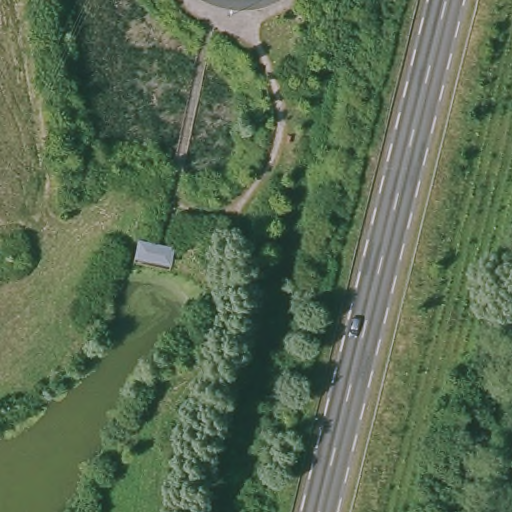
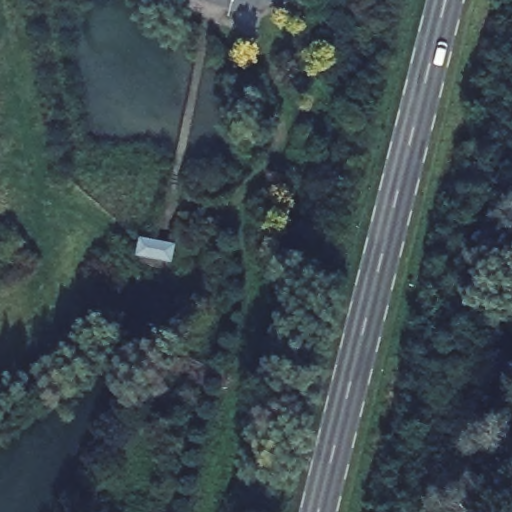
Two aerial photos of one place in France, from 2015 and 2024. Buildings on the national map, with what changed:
[]

